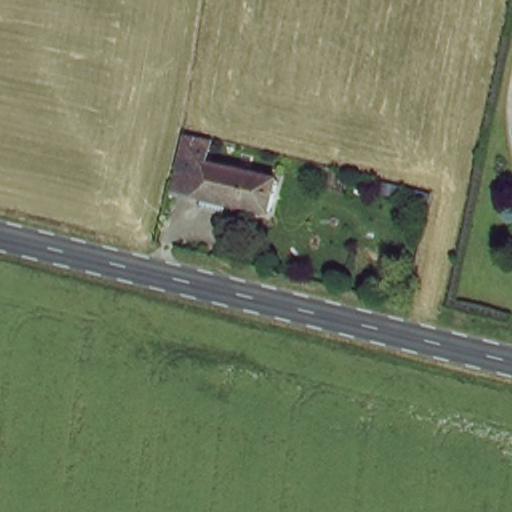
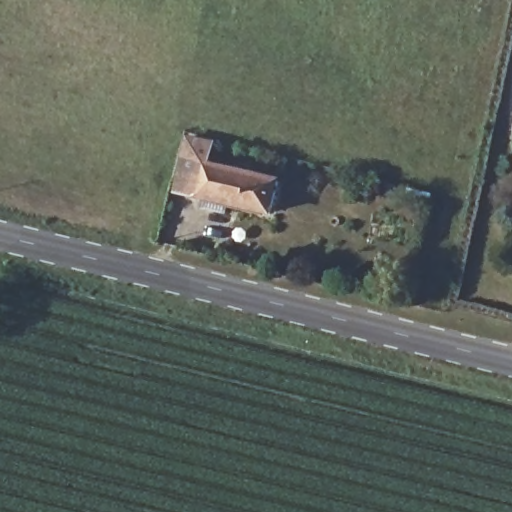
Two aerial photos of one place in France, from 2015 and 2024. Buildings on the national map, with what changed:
unchanged [(183,141),(204,147),(202,163),(276,182),(268,219),(171,195),(183,141)]

